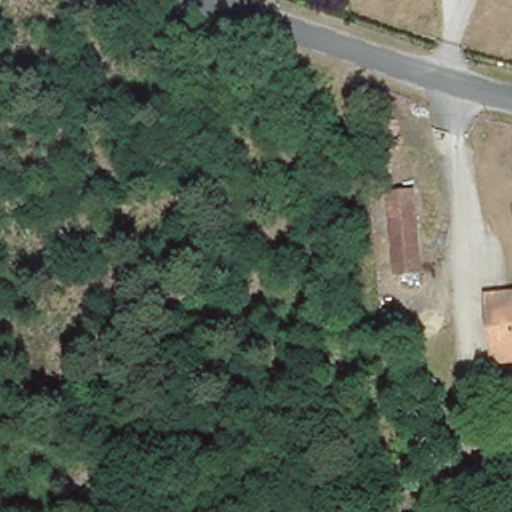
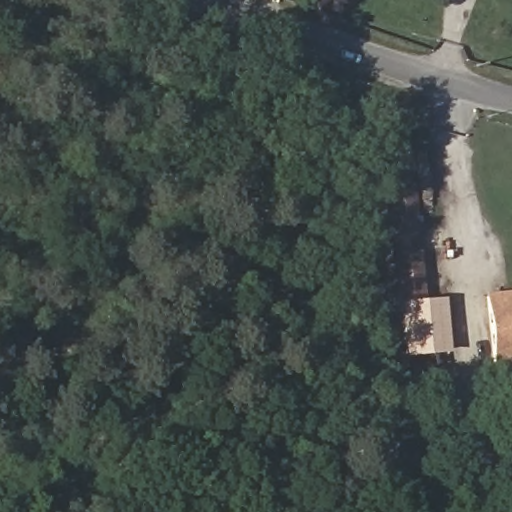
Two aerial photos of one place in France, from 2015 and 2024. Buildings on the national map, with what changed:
unchanged [(422,270),(394,276),(384,190),(413,185),(422,270)]
new [(401,303),(398,303),(394,276),(422,270),(426,299),(446,297),(451,353),(406,357),(401,303)]
unchanged [(484,288),(512,286),(512,362),(494,364),(484,288)]

